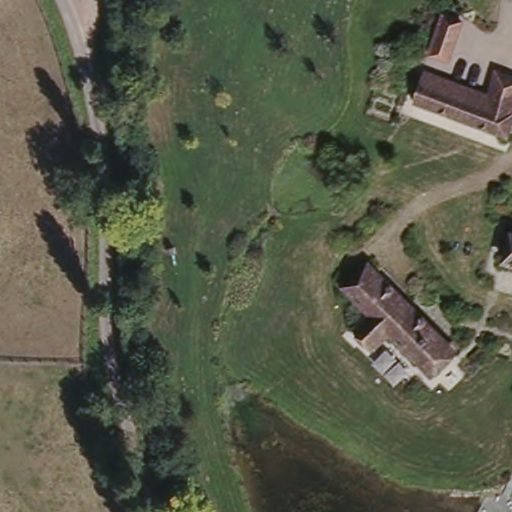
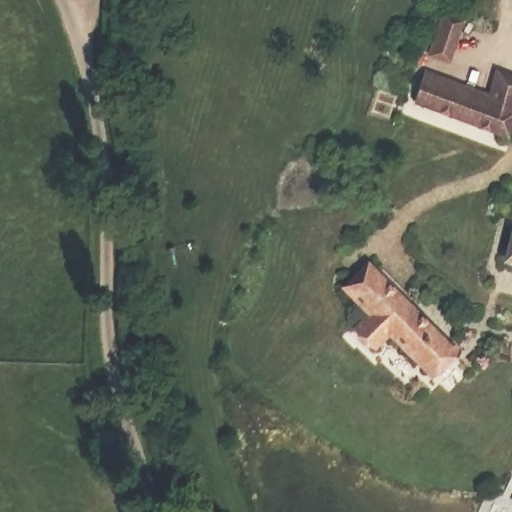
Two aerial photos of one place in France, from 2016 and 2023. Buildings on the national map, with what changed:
unchanged [(428,54),(441,12),(465,21),(450,63),(428,54)]
unchanged [(487,92),(496,71),(512,80),(512,120),(505,137),(411,104),(425,69),(487,92)]
unchanged [(512,231),(512,264),(501,261),(510,231),(512,231)]
unchanged [(387,334),(369,350),(350,329),(365,315),(340,287),(368,260),(457,355),(433,380),(387,334)]

